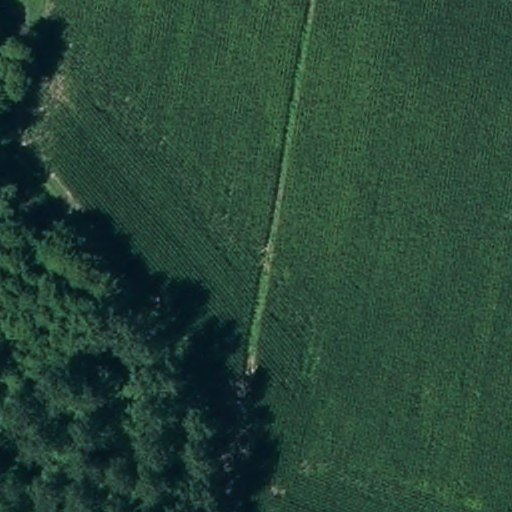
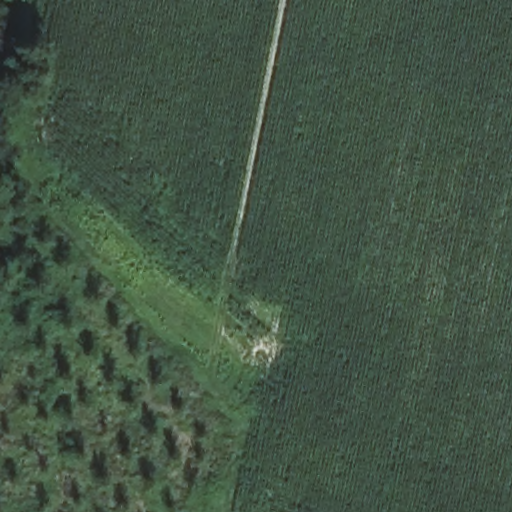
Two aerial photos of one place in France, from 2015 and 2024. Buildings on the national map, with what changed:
[]

